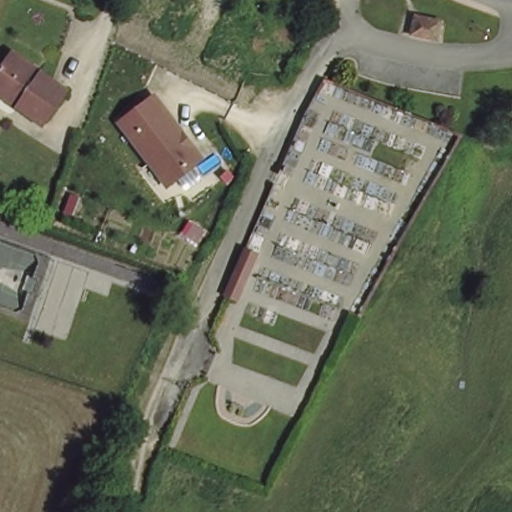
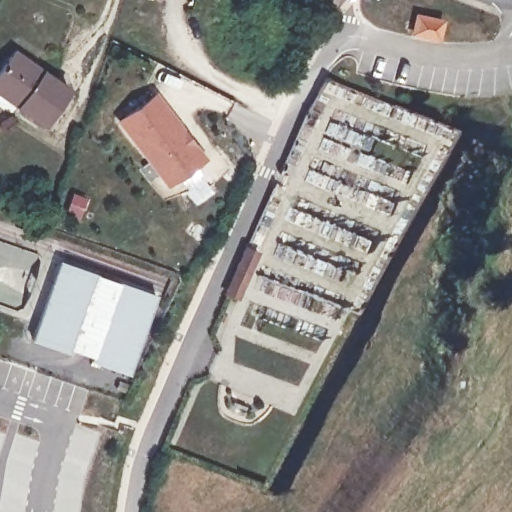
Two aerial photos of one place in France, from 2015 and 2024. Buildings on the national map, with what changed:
unchanged [(441,21),(437,39),(413,33),(417,16),(441,21)]
unchanged [(68,90),(43,125),(18,106),(0,94),(0,70),(13,52),(68,90)]
unchanged [(154,95),(203,158),(168,184),(120,121),(154,95)]
unchanged [(259,254),(240,298),(229,294),(249,249),(259,254)]
new [(57,258),(154,292),(126,374),(68,350),(66,353),(29,339),(57,258)]

